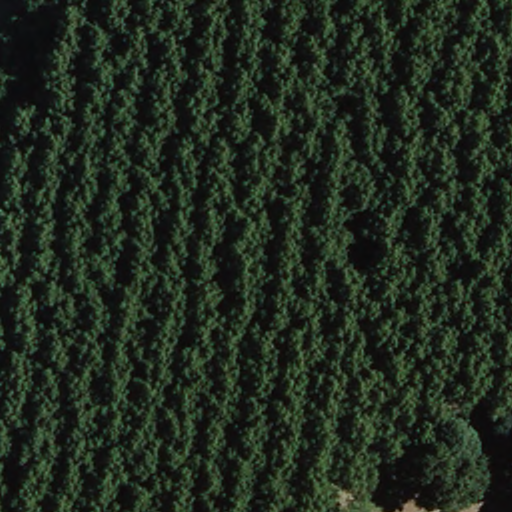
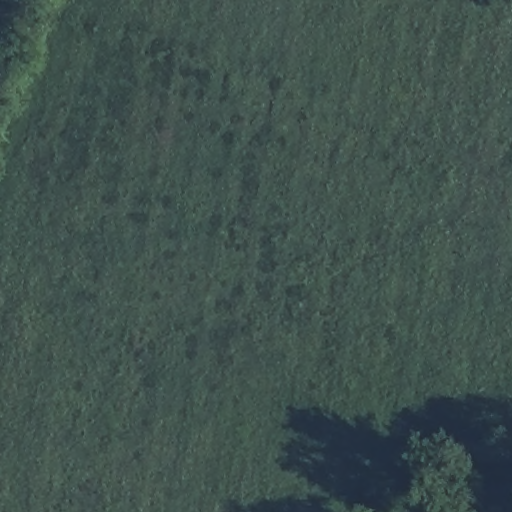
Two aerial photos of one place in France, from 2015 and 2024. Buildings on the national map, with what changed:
[]

